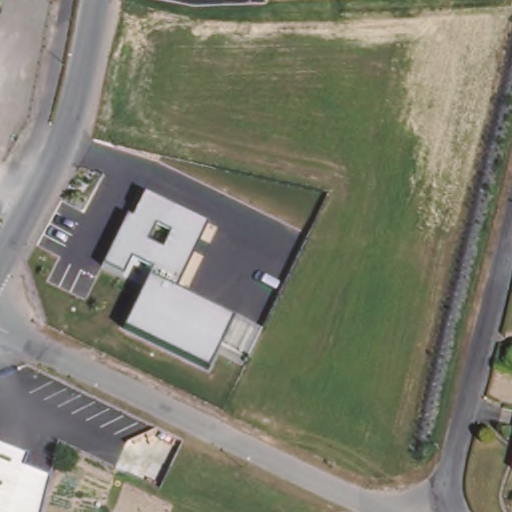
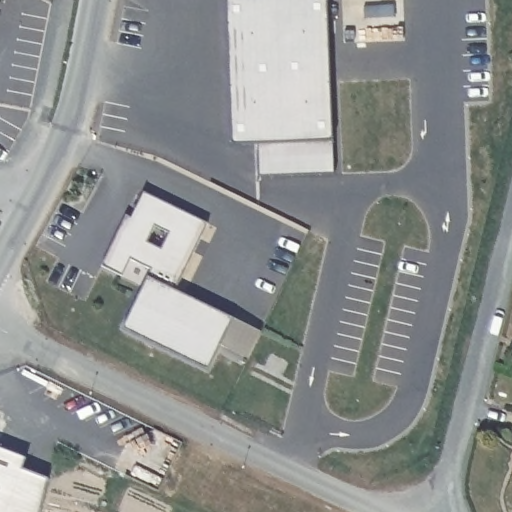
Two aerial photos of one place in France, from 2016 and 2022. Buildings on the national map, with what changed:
new [(260,174),(258,141),(232,142),(227,0),(326,0),(333,139),(334,172),(260,174)]
unchanged [(207,223),(175,290),(232,317),(206,368),(124,328),(152,268),(131,259),(122,276),(103,265),(127,216),(132,218),(144,193),(207,223)]
unchanged [(27,458),(22,470),(46,479),(45,480),(38,512),(0,512),(0,448),(27,458)]

